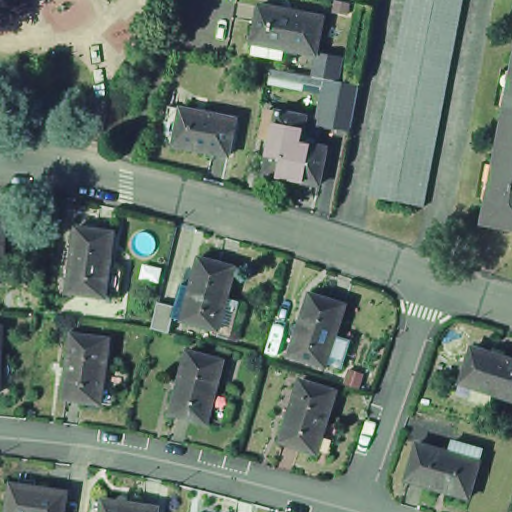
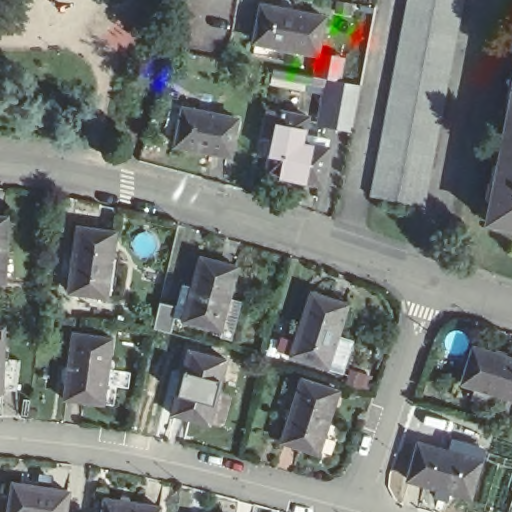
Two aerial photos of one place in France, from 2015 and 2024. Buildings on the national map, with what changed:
unchanged [(370,202),(408,0),(464,0),(424,212),(370,202)]
unchanged [(249,54),(250,42),(257,5),(320,17),(314,55),(282,49),(279,60),(249,54)]
unchanged [(512,32),(512,120),(495,117),(512,32)]
unchanged [(326,81),(325,84),(324,93),(270,80),(275,69),(320,78),(326,50),(353,55),(347,87),(326,81)]
unchanged [(336,86),(355,90),(347,133),(317,127),(324,93),(325,84),(336,86)]
unchanged [(237,124),(230,161),(175,151),(177,138),(165,135),(169,112),(182,115),(182,114),(237,124)]
unchanged [(321,190),(265,180),(269,163),(259,161),(263,141),(267,116),(277,118),(306,124),(301,148),(328,154),(321,190)]
unchanged [(512,120),(512,221),(477,215),(495,117),(512,120)]
unchanged [(4,282),(0,282),(0,218),(7,218),(4,282)]
unchanged [(115,237),(106,301),(69,296),(77,232),(115,237)]
unchanged [(220,338),(207,335),(209,330),(172,320),(190,257),(226,268),(217,299),(230,302),(220,338)]
unchanged [(342,305),(322,367),(285,356),(305,293),(342,305)]
unchanged [(107,406),(97,405),(60,400),(69,335),(106,340),(102,370),(112,372),(107,406)]
unchanged [(474,352),(512,364),(512,405),(495,398),(490,411),(452,398),(455,386),(462,388),(474,352)]
unchanged [(214,433),(199,429),(162,419),(179,356),(215,366),(207,397),(222,401),(214,433)]
unchanged [(0,399),(0,364),(7,365),(5,399),(0,399)]
unchanged [(319,463),(308,460),(271,447),(291,385),(328,397),(318,427),(330,431),(319,463)]
unchanged [(446,457),(450,445),(479,454),(475,465),(465,503),(403,485),(414,447),(446,457)]
unchanged [(9,483),(64,492),(61,512),(4,512),(9,483)]
unchanged [(100,499),(155,507),(154,512),(99,512),(100,499)]

